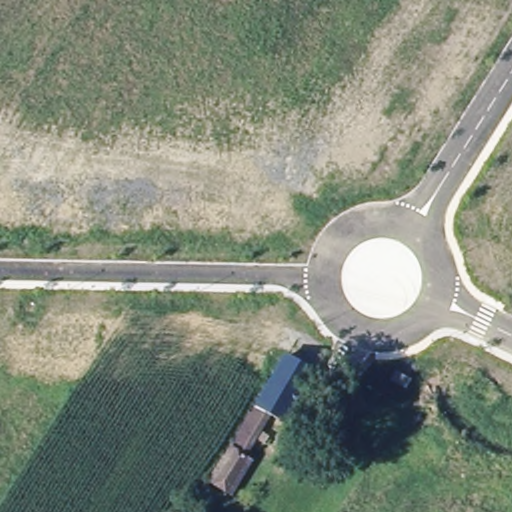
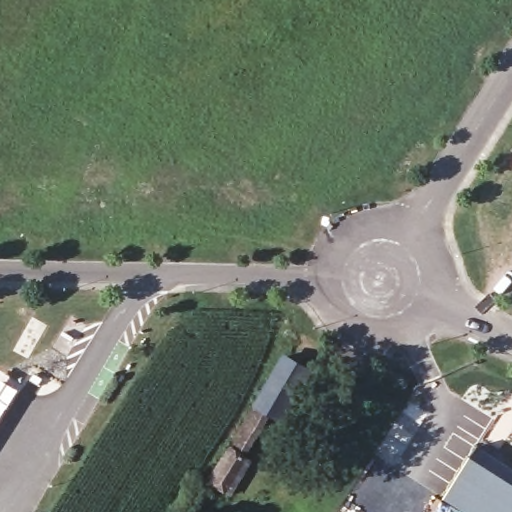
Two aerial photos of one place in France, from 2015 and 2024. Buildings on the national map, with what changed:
unchanged [(279,420),(264,411),(292,364),(308,371),(279,420)]
new [(20,390),(0,422),(0,377),(20,390)]
unchanged [(259,464),(232,503),(203,488),(229,443),(259,464)]
new [(512,468),(512,512),(462,512),(442,500),(478,447),(512,468)]

